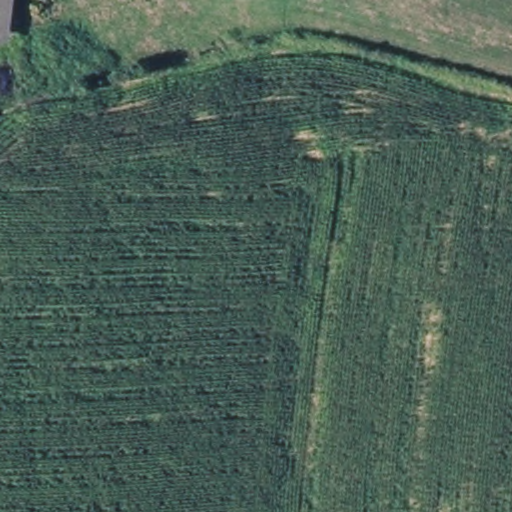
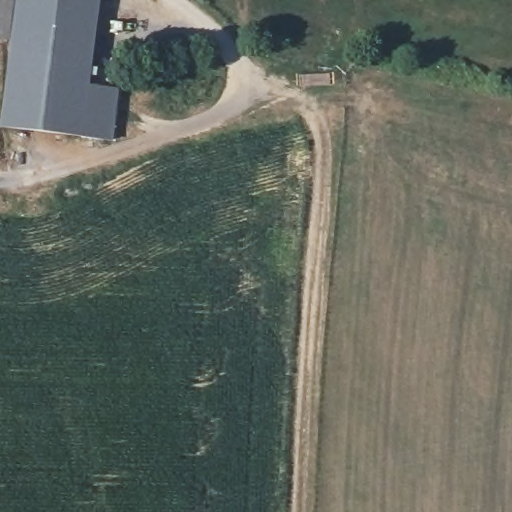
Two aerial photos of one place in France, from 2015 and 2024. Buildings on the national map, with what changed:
unchanged [(0,42),(0,0),(17,0),(11,43),(0,42)]
new [(120,91),(114,141),(0,129),(11,43),(17,0),(99,0),(88,87),(120,91)]

